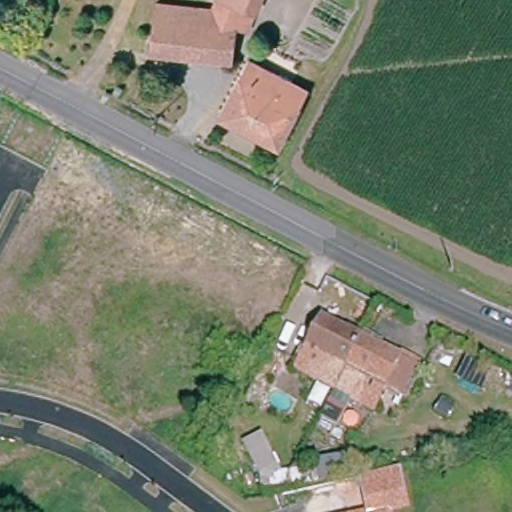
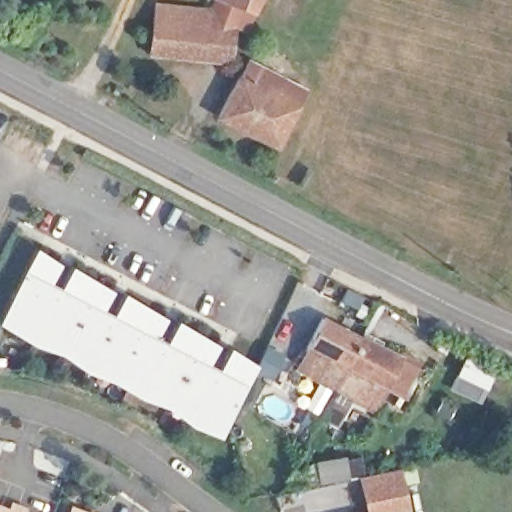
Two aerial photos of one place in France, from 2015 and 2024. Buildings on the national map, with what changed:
unchanged [(211,0),(261,0),(255,16),(246,12),(223,4),(218,2),(217,2),(215,2),(211,0)]
unchanged [(214,32),(214,28),(208,27),(167,24),(160,24),(153,22),(154,7),(170,9),(172,9),(211,12),(215,2),(217,2),(218,2),(223,4),(246,12),(236,36),(233,65),(211,63),(214,32)]
unchanged [(160,24),(167,24),(208,27),(207,31),(214,32),(211,63),(150,57),(148,57),(160,24)]
unchanged [(49,57),(38,52),(43,44),(53,49),(49,57)]
unchanged [(279,146),(219,116),(248,62),(260,67),(292,84),(307,92),(279,146)]
unchanged [(114,83),(120,87),(116,93),(110,90),(114,83)]
new [(60,352),(32,343),(0,323),(0,313),(1,310),(32,251),(34,247),(57,262),(56,263),(47,281),(57,287),(66,269),(69,265),(109,289),(108,291),(99,308),(110,313),(119,296),(121,292),(163,316),(162,318),(153,336),(163,341),(172,323),(175,319),(215,343),(214,345),(205,362),(216,368),(225,351),(227,346),(255,363),(254,366),(223,425),(218,435),(190,424),(166,407),(139,396),(126,388),(112,381),(85,370),(60,352)]
unchanged [(362,337),(347,367),(344,378),(343,381),(337,393),(303,376),(314,352),(308,349),(324,317),(363,337),(362,337)]
unchanged [(393,404),(381,398),(378,405),(358,394),(362,387),(344,378),(347,367),(362,337),(363,337),(414,364),(420,367),(405,397),(399,407),(393,404)]
new [(264,426),(283,465),(264,474),(246,435),(264,426)]
unchanged [(366,512),(359,478),(401,469),(409,510),(395,512),(363,512),(366,512)]
new [(4,510),(8,500),(22,506),(19,512),(0,512),(0,508),(4,510)]
new [(79,512),(69,512),(70,508),(79,512)]

